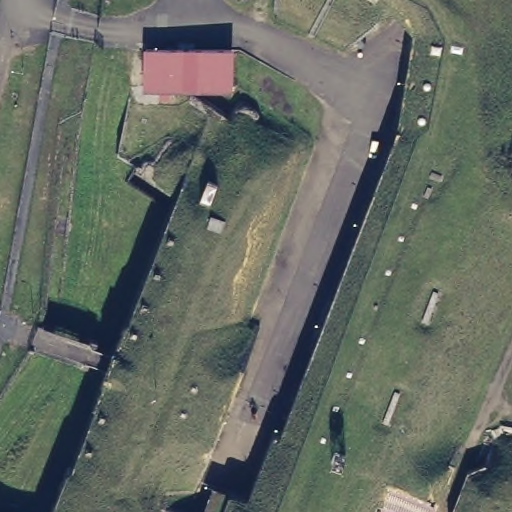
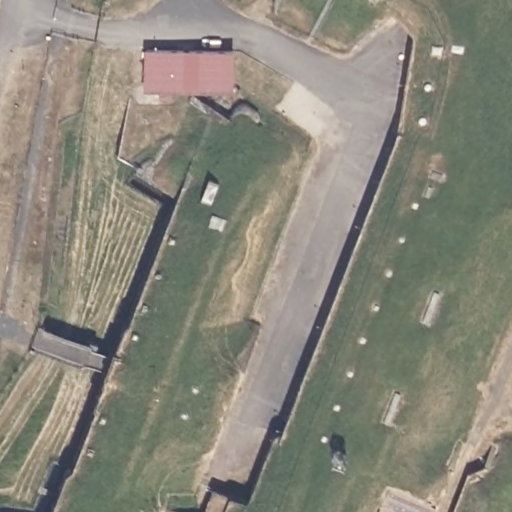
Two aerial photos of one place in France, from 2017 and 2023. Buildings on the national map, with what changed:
unchanged [(232,50),(234,91),(144,87),(145,49),(232,50)]

